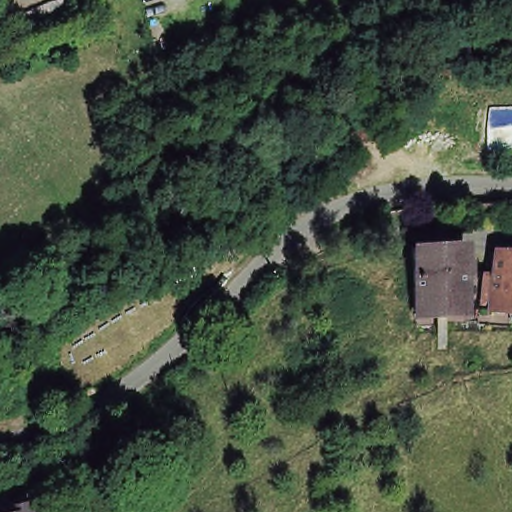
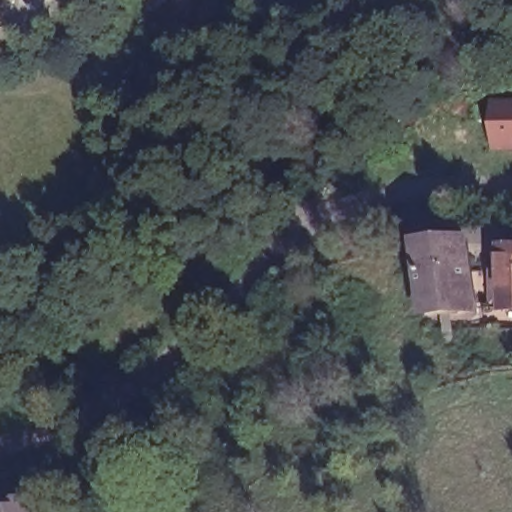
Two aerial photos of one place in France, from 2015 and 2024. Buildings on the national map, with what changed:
new [(494,152),(493,102),(512,102),(512,152),(494,152)]
unchanged [(423,309),(418,244),(467,241),(472,306),(423,309)]
unchanged [(493,288),(495,258),(512,259),(512,289),(493,288)]
unchanged [(492,315),(493,288),(512,289),(512,316),(492,315)]
unchanged [(0,510),(22,504),(23,510),(40,505),(43,512),(1,512),(0,510)]

